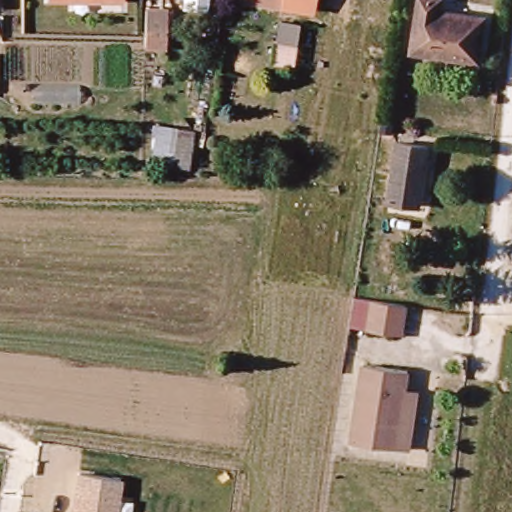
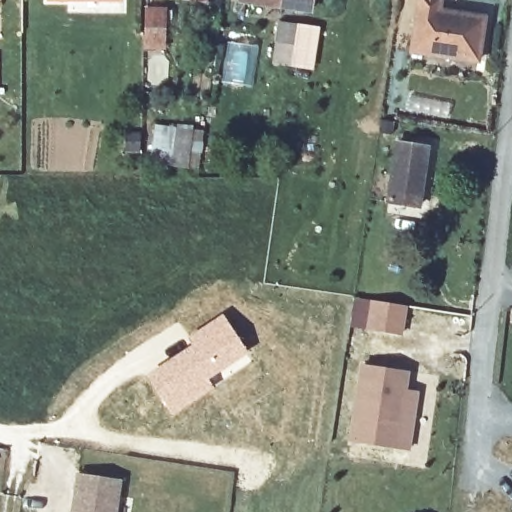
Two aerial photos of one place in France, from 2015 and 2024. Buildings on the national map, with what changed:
unchanged [(237,1),(238,0),(313,0),(311,11),(237,1)]
unchanged [(434,0),(437,0),(435,12),(482,19),(476,63),(407,53),(415,0),(434,0)]
unchanged [(143,26),(144,10),(165,10),(164,47),(143,46),(143,26)]
unchanged [(295,48),(275,45),(279,19),(298,24),(295,48)]
unchanged [(166,163),(171,125),(190,128),(185,165),(166,163)]
unchanged [(415,202),(381,197),(390,138),(424,143),(415,202)]
unchanged [(393,333),(361,328),(366,298),(398,303),(393,333)]
new [(191,342),(187,337),(223,312),(249,351),(210,379),(214,386),(173,414),(146,374),(191,342)]
unchanged [(358,439),(370,361),(414,369),(411,389),(423,389),(416,448),(402,446),(358,439)]
unchanged [(119,481),(114,512),(73,512),(79,474),(119,481)]
new [(512,512),(509,508),(512,506),(512,512)]

